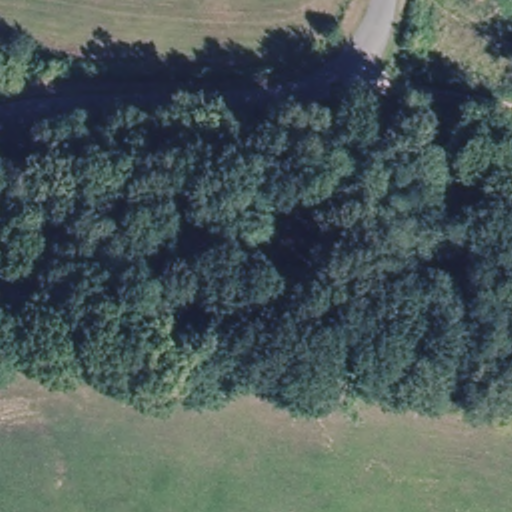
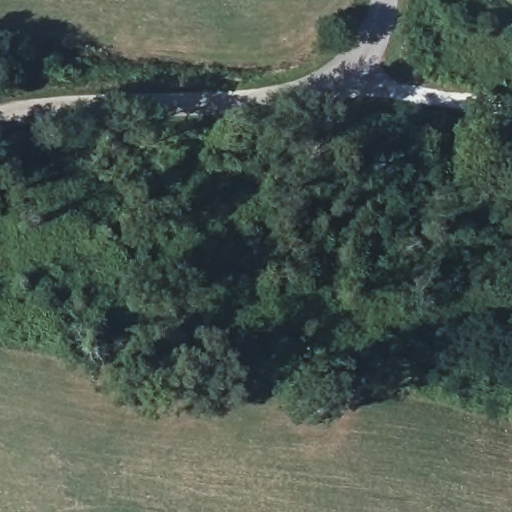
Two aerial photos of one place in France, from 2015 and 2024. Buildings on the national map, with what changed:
unchanged [(63,86),(60,61),(90,56),(95,81),(63,86)]

